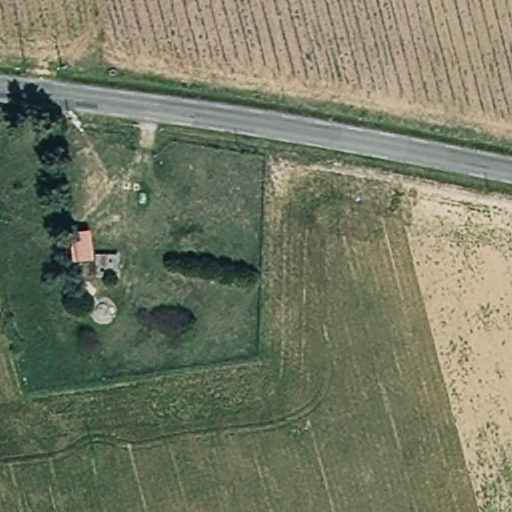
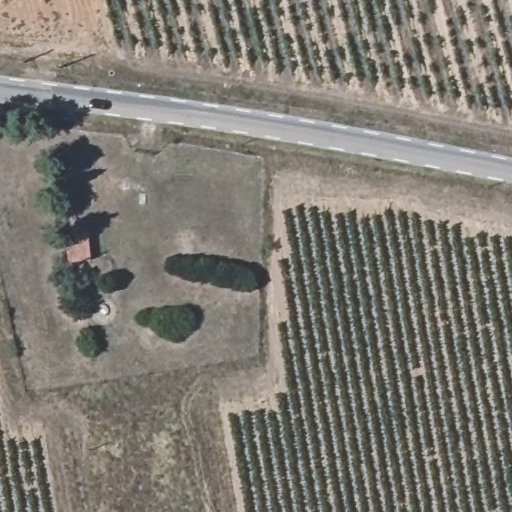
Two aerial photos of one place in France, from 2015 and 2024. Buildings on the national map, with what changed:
unchanged [(87,228),(88,255),(70,257),(67,230),(87,228)]

